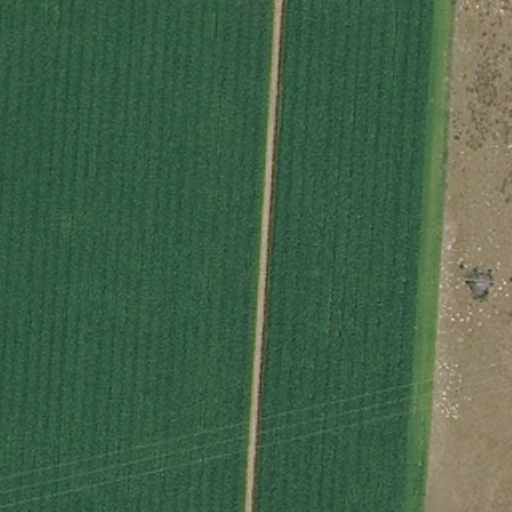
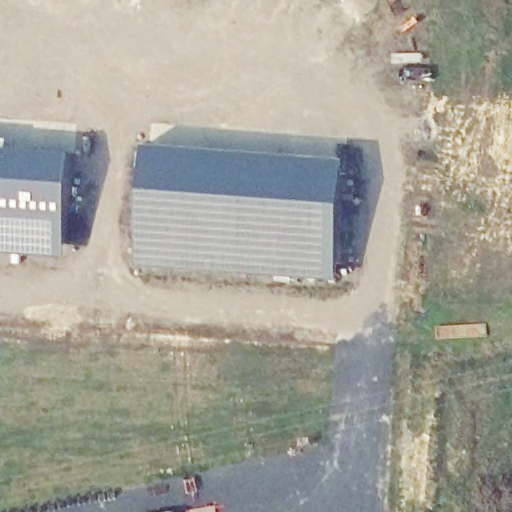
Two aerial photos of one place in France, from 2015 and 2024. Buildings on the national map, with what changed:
new [(148,146),(349,159),(341,280),(139,265),(148,146)]
new [(0,252),(0,149),(74,155),(68,257),(0,252)]

